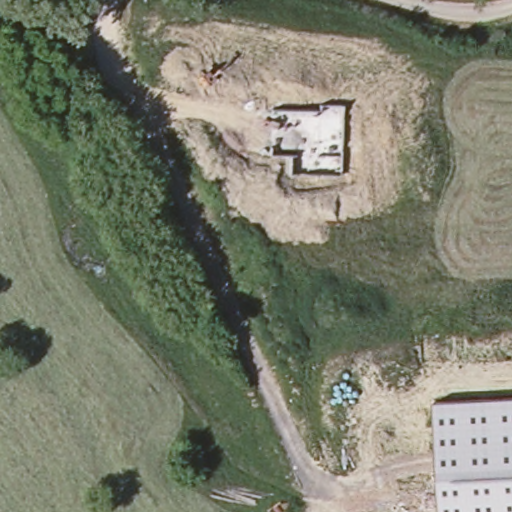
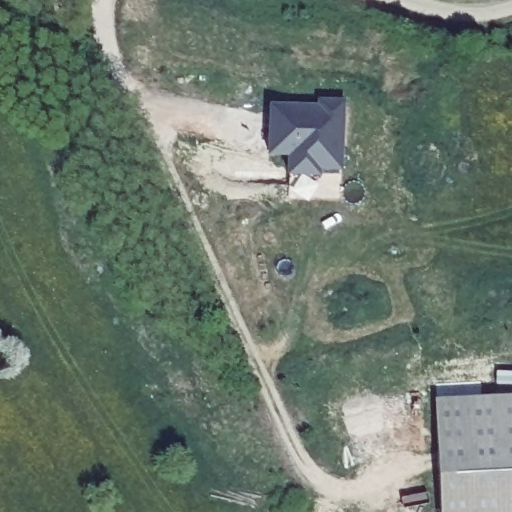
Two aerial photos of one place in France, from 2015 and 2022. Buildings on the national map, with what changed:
new [(344,100),(343,170),(320,170),(320,176),(288,175),(288,156),(267,156),(270,104),(317,105),(317,99),(344,100)]
unchanged [(440,512),(435,400),(512,396),(512,512),(440,512)]

